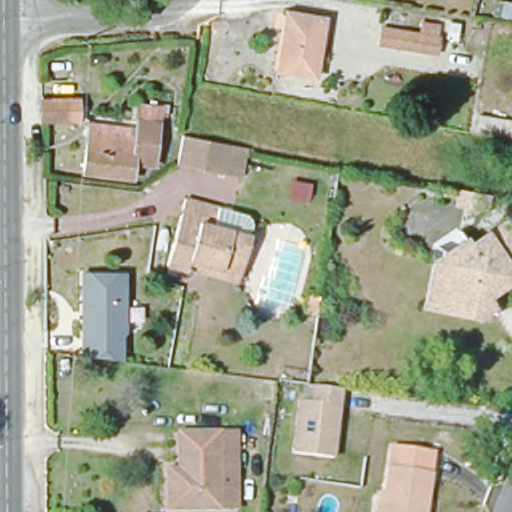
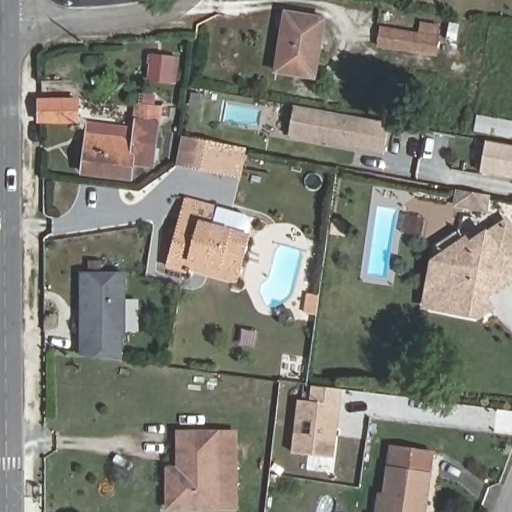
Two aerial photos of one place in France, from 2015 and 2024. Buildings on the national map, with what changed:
unchanged [(325,19),(315,78),(277,71),(286,12),(325,19)]
unchanged [(382,28),(438,38),(436,55),(379,45),(382,28)]
unchanged [(77,120),(41,121),(41,101),(77,100),(77,120)]
new [(293,104),(389,122),(383,153),(288,135),(293,104)]
unchanged [(481,115),(512,120),(512,136),(477,129),(481,115)]
unchanged [(159,129),(155,162),(145,169),(132,167),(131,184),(84,178),(89,139),(91,140),(92,130),(136,136),(137,127),(159,129)]
unchanged [(246,148),(241,177),(226,174),(177,165),(182,136),(232,145),(241,147),(246,148)]
new [(512,144),(512,176),(480,170),(486,139),(512,144)]
unchanged [(486,209),(457,203),(460,188),(481,192),(489,194),(486,209)]
unchanged [(187,267),(186,270),(167,265),(185,199),(217,208),(212,225),(251,236),(241,273),(239,281),(187,267)]
unchanged [(452,253),(471,240),(475,246),(492,235),(492,236),(512,222),(512,281),(491,295),(497,307),(443,297),(452,253)]
unchanged [(492,317),(431,305),(441,256),(452,253),(443,297),(497,307),(492,317)]
unchanged [(122,335),(124,360),(82,355),(82,272),(126,271),(127,332),(122,335)]
unchanged [(320,297),(320,298),(317,314),(306,312),(307,295),(320,297)]
unchanged [(342,389),(335,457),(292,452),(298,399),(311,400),(312,385),(342,389)]
unchanged [(162,468),(177,465),(177,430),(240,432),(241,510),(163,511),(162,468)]
unchanged [(392,502),(398,457),(437,463),(430,512),(382,512),(384,501),(392,502)]

